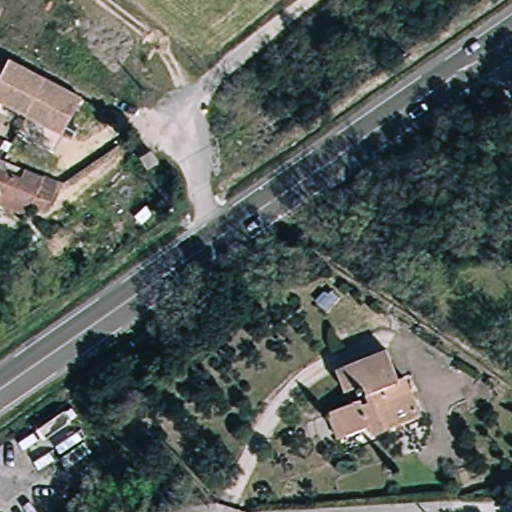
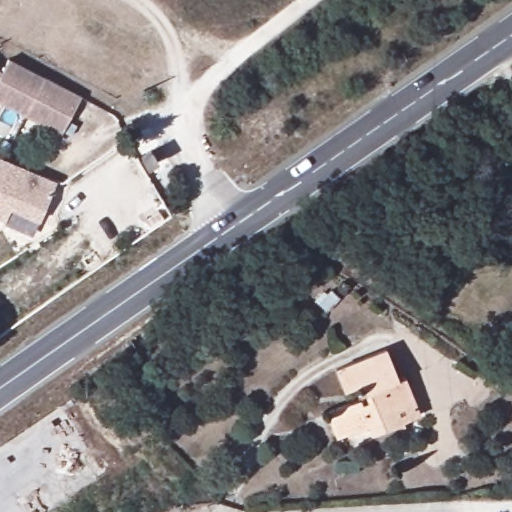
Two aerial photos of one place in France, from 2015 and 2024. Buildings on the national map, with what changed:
unchanged [(82,99),(63,135),(0,103),(0,83),(10,65),(82,99)]
unchanged [(160,164),(150,172),(142,159),(153,150),(160,164)]
unchanged [(0,199),(0,155),(58,179),(42,216),(0,199)]
unchanged [(512,185),(512,188),(510,186),(512,185)]
unchanged [(334,408),(343,404),(364,395),(368,400),(377,396),(371,379),(355,383),(348,365),(391,345),(402,372),(408,371),(425,410),(382,428),(377,420),(353,429),(344,432),(334,408)]

